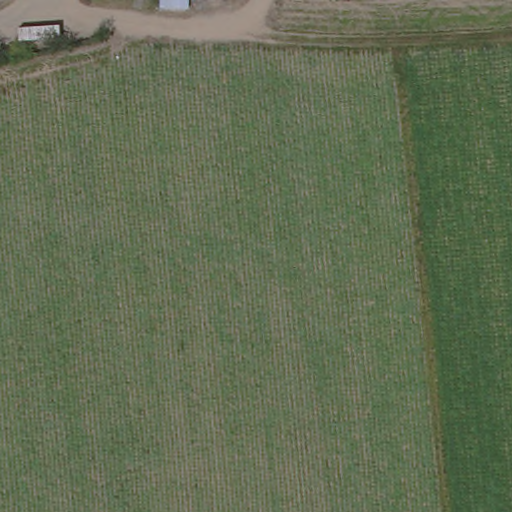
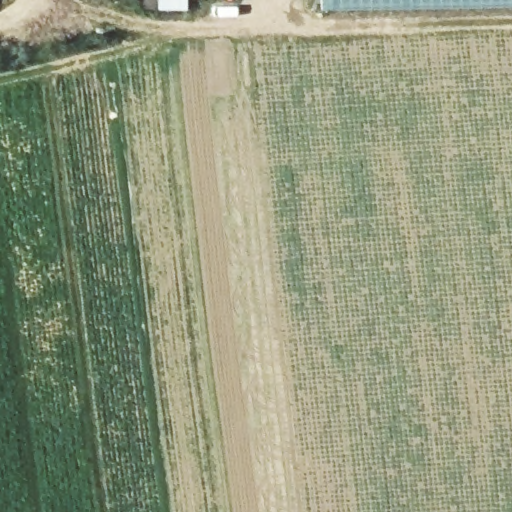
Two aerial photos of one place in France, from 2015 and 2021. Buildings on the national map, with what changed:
new [(512,0),(512,5),(324,8),(324,0),(512,0)]

